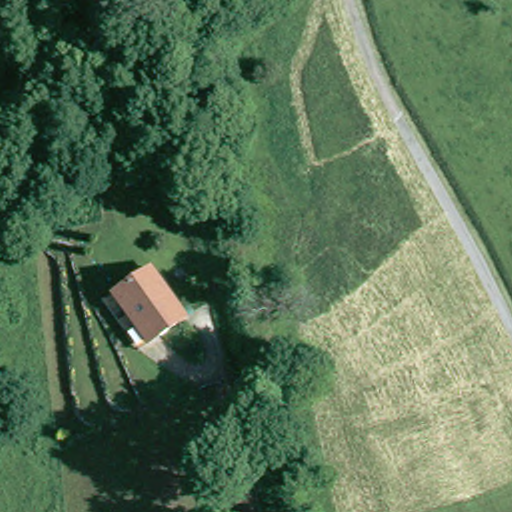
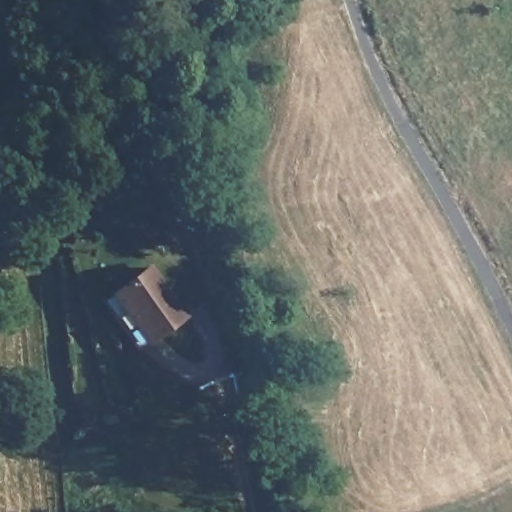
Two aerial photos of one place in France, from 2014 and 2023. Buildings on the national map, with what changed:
unchanged [(150,269),(193,319),(150,349),(113,298),(150,269)]

